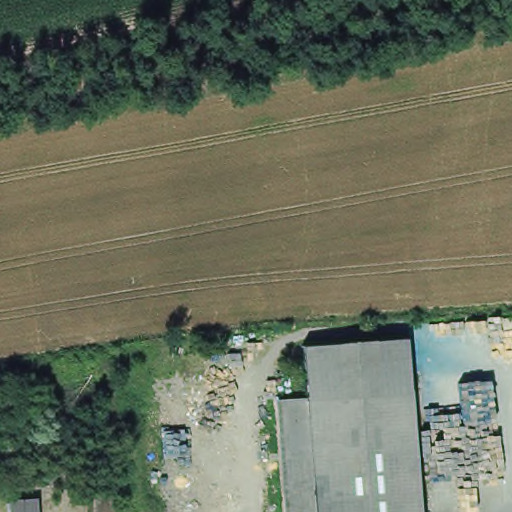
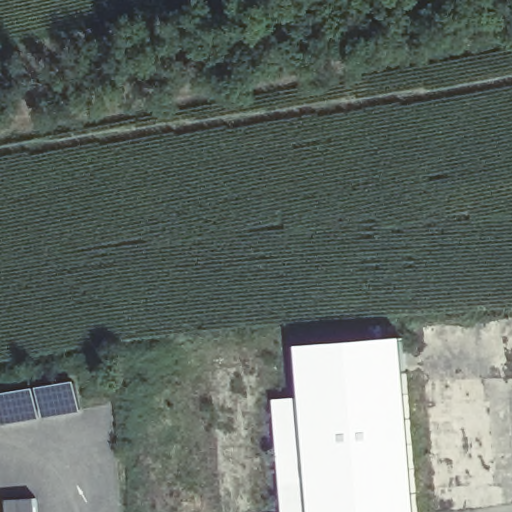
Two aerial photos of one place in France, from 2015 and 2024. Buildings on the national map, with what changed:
unchanged [(298,345),(402,337),(406,393),(302,401),(298,345)]
new [(82,410),(0,425),(0,392),(76,378),(82,410)]
unchanged [(310,512),(302,401),(406,393),(415,512),(310,512)]
unchanged [(302,401),(310,512),(284,512),(276,403),(302,401)]
unchanged [(34,499),(35,512),(7,512),(6,501),(34,499)]

